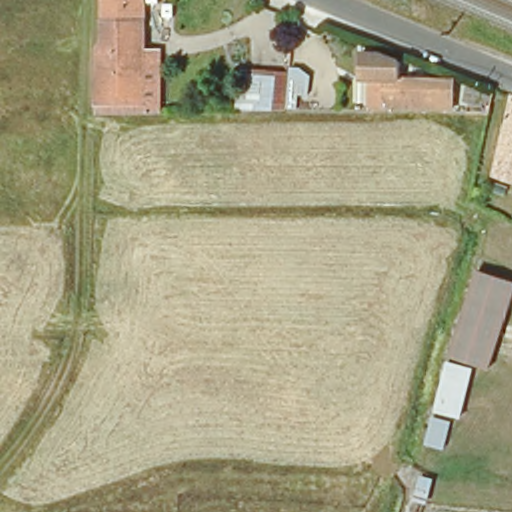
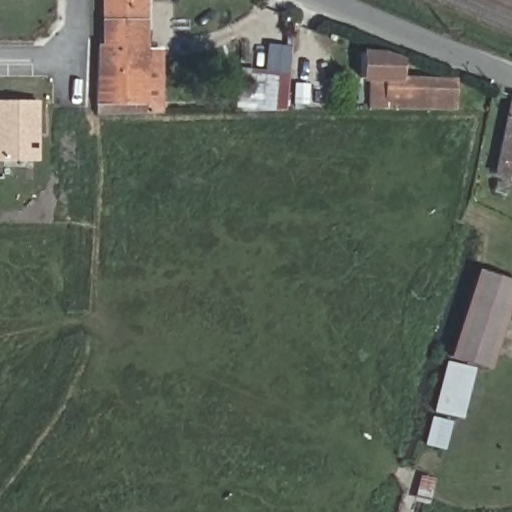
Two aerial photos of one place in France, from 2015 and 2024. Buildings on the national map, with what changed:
unchanged [(107,42),(109,0),(147,0),(147,2),(147,42),(107,42)]
unchanged [(142,117),(102,117),(102,49),(107,49),(107,42),(147,42),(147,55),(164,55),(162,117),(142,117)]
unchanged [(398,83),(451,84),(451,113),(368,112),(368,82),(358,82),(359,57),(380,57),(398,65),(398,83)]
unchanged [(236,110),(240,70),(252,70),(252,75),(265,76),(266,71),(288,72),(285,109),(236,110)]
new [(0,161),(0,102),(39,102),(39,161),(0,161)]
unchanged [(501,165),(512,121),(512,168),(501,165)]
unchanged [(450,362),(481,268),(512,282),(512,311),(490,368),(478,367),(461,422),(452,421),(443,452),(427,449),(450,362)]

